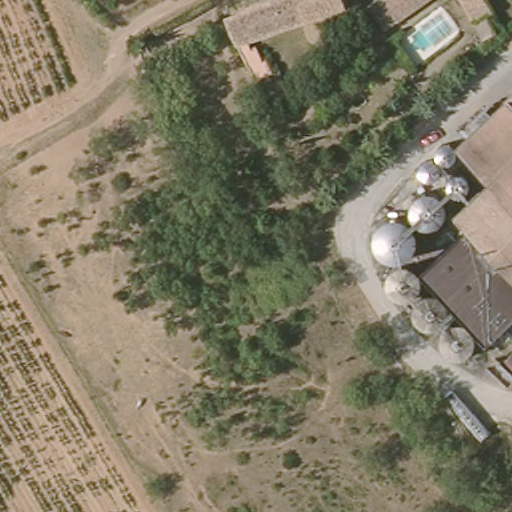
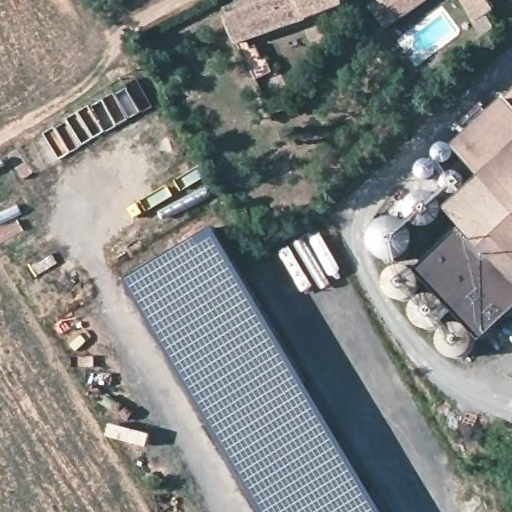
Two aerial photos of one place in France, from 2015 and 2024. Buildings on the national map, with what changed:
unchanged [(265,35),(237,46),(227,25),(224,18),(272,0),(350,0),(348,3),(307,19),(265,35)]
unchanged [(431,0),(387,32),(366,7),(377,0),(431,0)]
unchanged [(490,14),(496,29),(502,27),(507,35),(482,45),(457,0),(487,0),(495,12),(490,14)]
unchanged [(494,337),(457,298),(423,262),(467,220),(455,206),(487,175),(456,144),(512,90),(512,320),(494,337)]
new [(465,152),(455,162),(469,175),(472,182),(472,190),(465,196),(456,194),(427,181),(422,173),(422,164),(439,147),(446,142),(451,142),(456,144),(465,152)]
unchanged [(454,218),(453,222),(452,226),(450,230),(447,232),(443,235),(440,236),(436,236),(432,236),(430,236),(426,234),(422,232),(420,229),(418,225),(417,221),(417,217),(417,214),(418,210),(420,206),(423,203),(427,200),(430,199),(434,199),(438,199),(445,201),(448,204),(451,206),(452,210),(454,214),(454,218)]
unchanged [(413,232),(412,236),(411,240),(409,244),(406,246),(402,249),(399,250),(395,250),(391,250),(389,250),(385,248),(382,246),(380,243),(377,239),(376,235),(376,231),(377,227),(377,224),(380,220),(382,217),(386,215),(390,213),(394,212),(397,212),(405,215),(407,217),(410,220),(412,225),(413,228),(413,232)]
new [(216,229),(384,512),(266,512),(127,280),(216,229)]
unchanged [(416,284),(415,287),(412,291),(410,294),(406,296),(402,297),(399,298),(395,298),(392,298),(389,296),(386,293),(383,290),(381,287),(380,283),(380,279),(380,275),(381,271),(384,268),(386,265),(390,262),(393,261),(397,260),(401,260),(408,262),(411,265),(414,268),(416,272),(417,276),(417,280),(416,284)]
unchanged [(448,313),(447,317),(445,321),(442,323),(439,326),(435,327),(431,328),(427,328),(425,327),(421,325),(417,323),(415,320),(413,316),(412,313),(412,309),(412,305),(414,301),(416,297),(418,295),(422,292),(425,290),(429,290),(433,290),(440,292),(444,295),(446,298),(447,301),(449,305),(449,310),(448,313)]
unchanged [(478,346),(475,352),(472,355),(468,357),(464,358),(460,359),(455,359),(454,358),(450,357),(447,355),(444,352),(442,348),(441,345),(440,341),(440,337),(441,333),(443,330),(446,326),(449,324),(454,322),(457,321),(462,321),(466,322),(470,324),(473,326),(476,330),(477,333),(479,337),(479,341),(478,346)]

